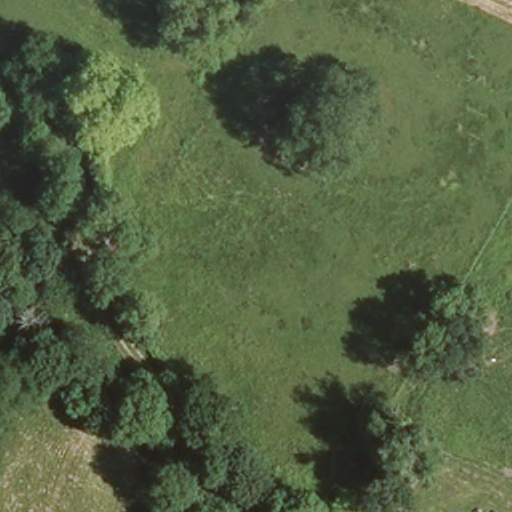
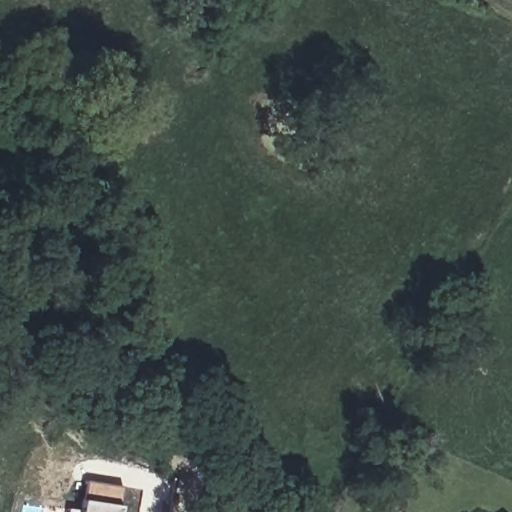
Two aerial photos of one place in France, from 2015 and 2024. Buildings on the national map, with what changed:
new [(66,510),(79,511),(83,482),(121,487),(117,512),(66,512),(66,510)]

